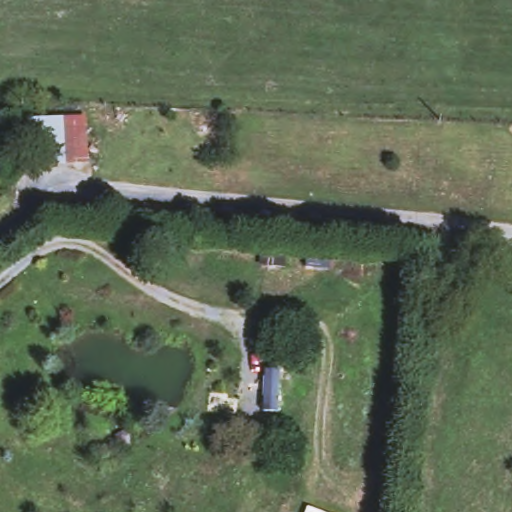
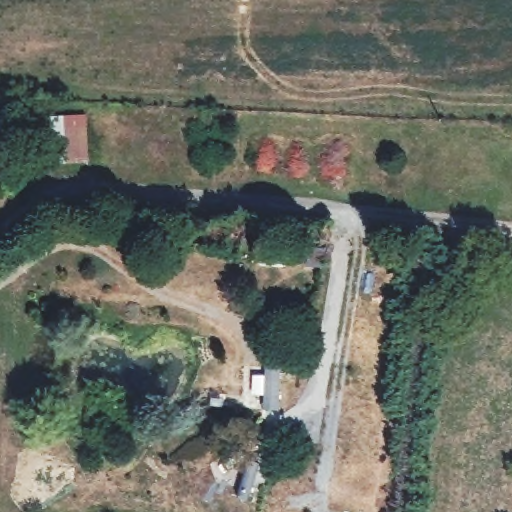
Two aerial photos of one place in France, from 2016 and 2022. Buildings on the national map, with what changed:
unchanged [(83,115),(86,165),(28,172),(21,117),(83,115)]

